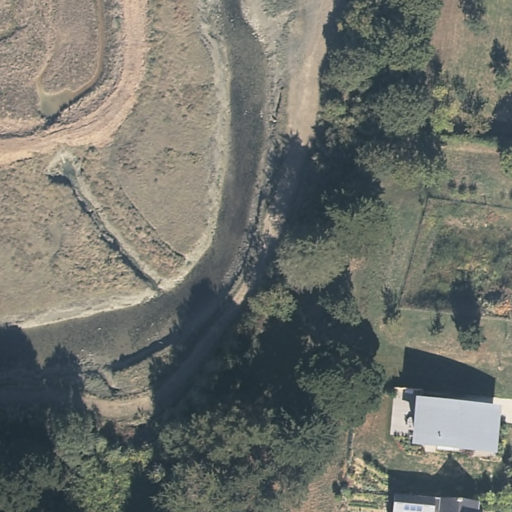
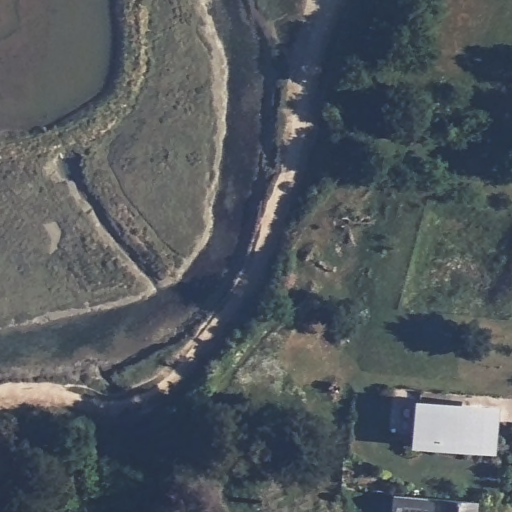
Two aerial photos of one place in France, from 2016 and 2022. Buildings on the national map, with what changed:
unchanged [(494,415),(491,450),(417,444),(420,409),(494,415)]
unchanged [(435,496),(473,500),(473,512),(434,512),(435,496)]

